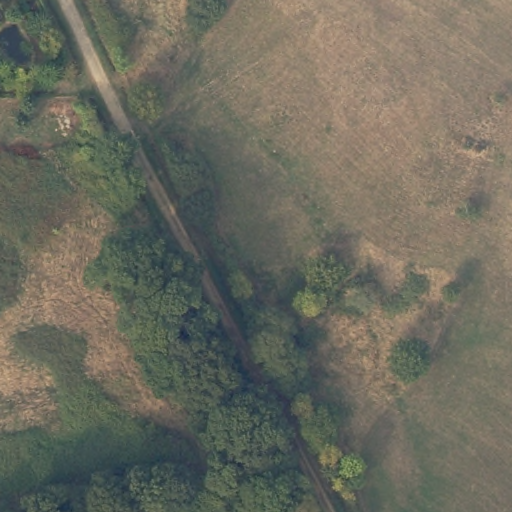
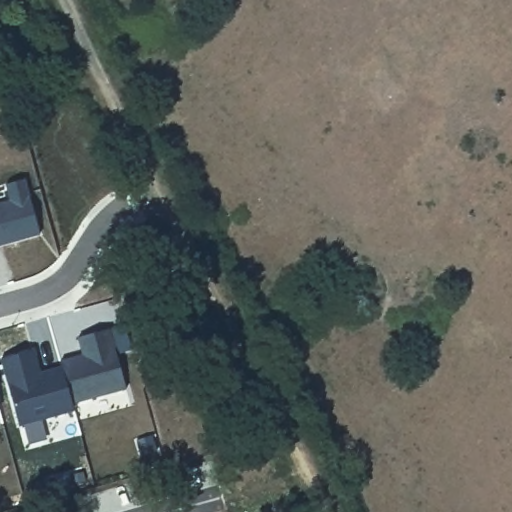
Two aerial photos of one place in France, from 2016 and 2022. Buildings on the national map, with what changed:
new [(11,201),(7,183),(27,178),(39,233),(0,244),(0,203),(11,201)]
new [(126,388),(72,400),(73,414),(19,428),(0,359),(0,357),(37,349),(42,370),(63,365),(61,360),(82,354),(79,337),(110,329),(126,388)]

